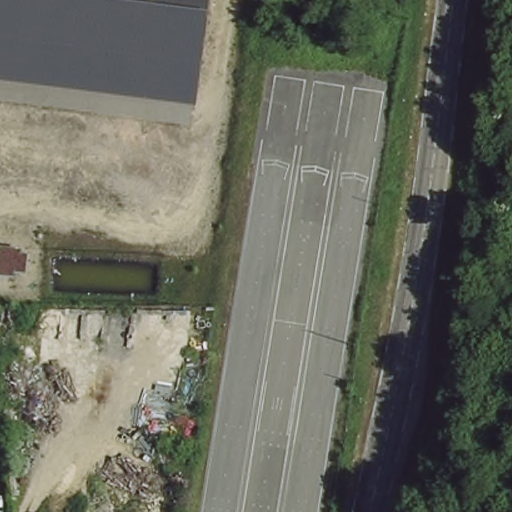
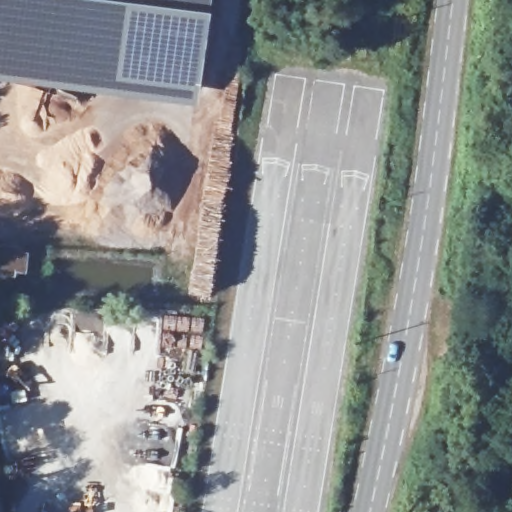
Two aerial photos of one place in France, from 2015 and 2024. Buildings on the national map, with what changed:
unchanged [(0,80),(0,0),(211,0),(197,105),(0,80)]
unchanged [(27,272),(17,270),(17,275),(0,274),(0,244),(22,246),(21,251),(30,252),(27,272)]

